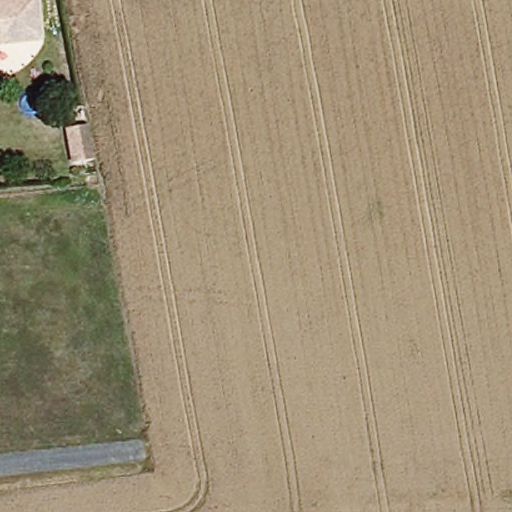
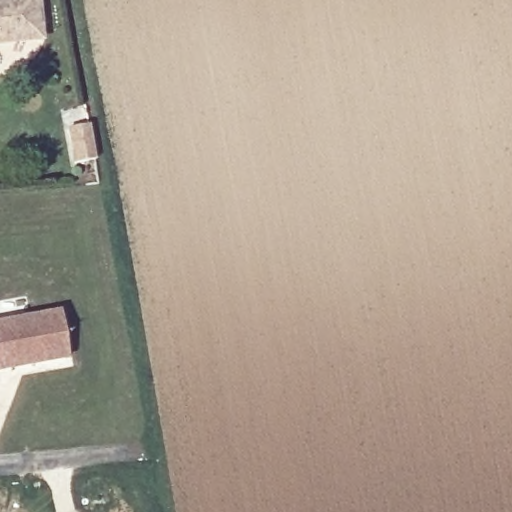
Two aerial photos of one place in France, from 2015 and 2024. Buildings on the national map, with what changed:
unchanged [(0,50),(0,0),(17,0),(24,46),(0,50)]
unchanged [(40,0),(46,43),(24,46),(17,0),(40,0)]
unchanged [(79,168),(78,168),(59,172),(52,138),(71,134),(72,134),(79,168)]
new [(59,310),(67,359),(0,372),(0,322),(59,310)]

